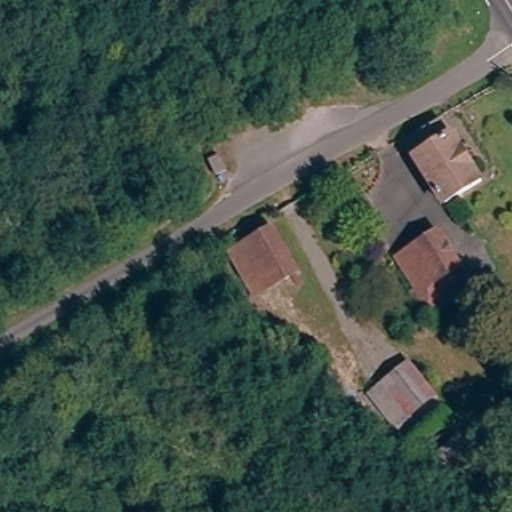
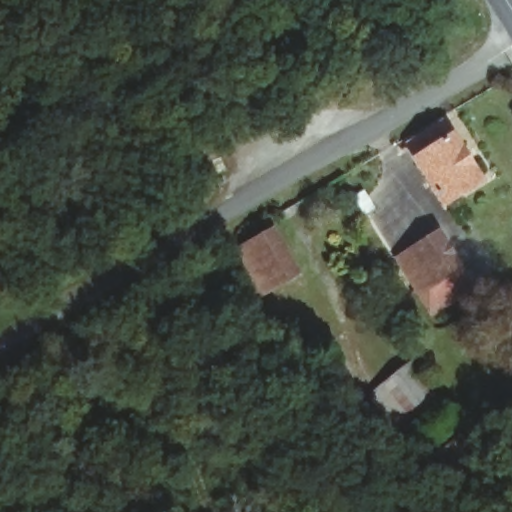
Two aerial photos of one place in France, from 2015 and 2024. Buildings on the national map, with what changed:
unchanged [(444,121),(455,139),(460,137),(489,184),(468,197),(452,206),(411,139),(444,121)]
unchanged [(211,151),(218,168),(200,176),(194,158),(211,151)]
unchanged [(279,228),(303,267),(282,281),(258,241),(279,228)]
unchanged [(444,231),(466,267),(422,294),(400,259),(444,231)]
unchanged [(282,281),(263,293),(238,254),(258,241),(282,281)]
unchanged [(436,316),(422,294),(466,267),(480,288),(470,295),(436,316)]
unchanged [(411,362),(440,398),(397,435),(368,396),(411,362)]
unchanged [(476,502),(432,460),(461,431),(506,478),(476,502)]

